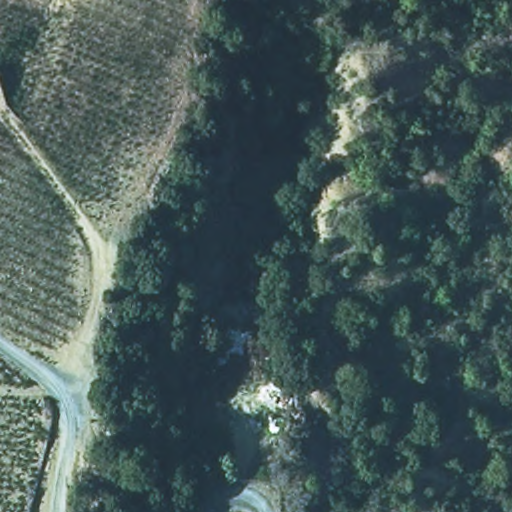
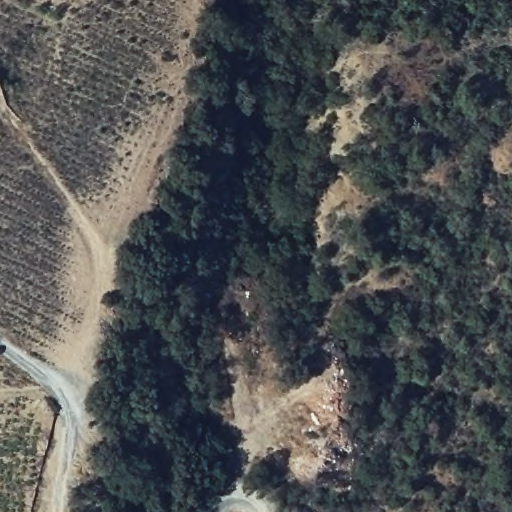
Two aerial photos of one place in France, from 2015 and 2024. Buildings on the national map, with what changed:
unchanged [(0,78),(0,72),(3,73),(0,78)]

